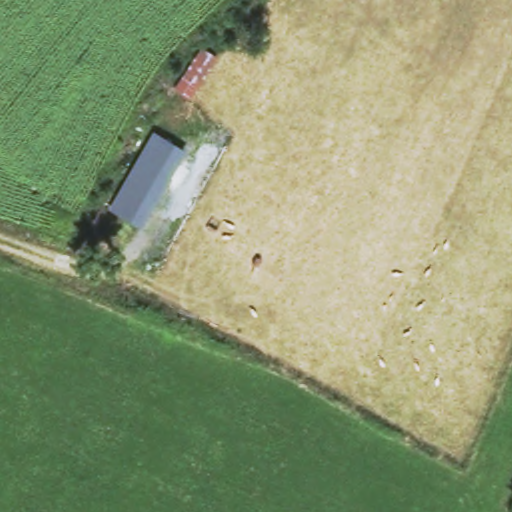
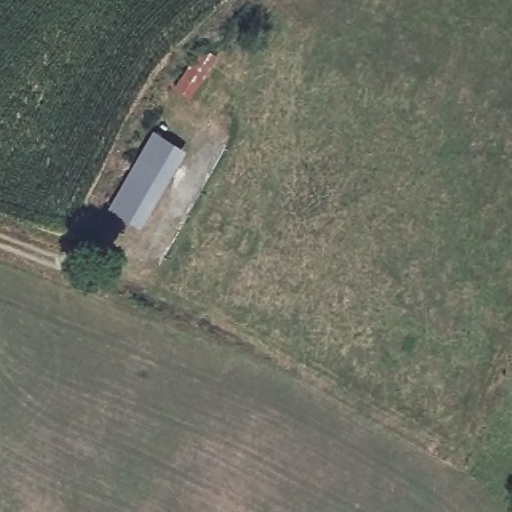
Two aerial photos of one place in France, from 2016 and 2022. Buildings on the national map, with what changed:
unchanged [(139,227),(109,210),(152,133),(185,151),(139,227)]

